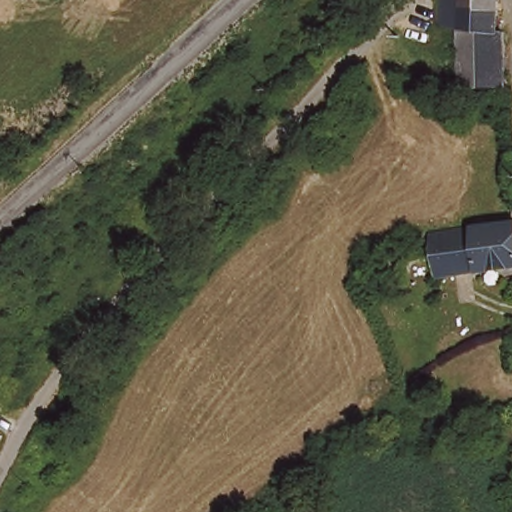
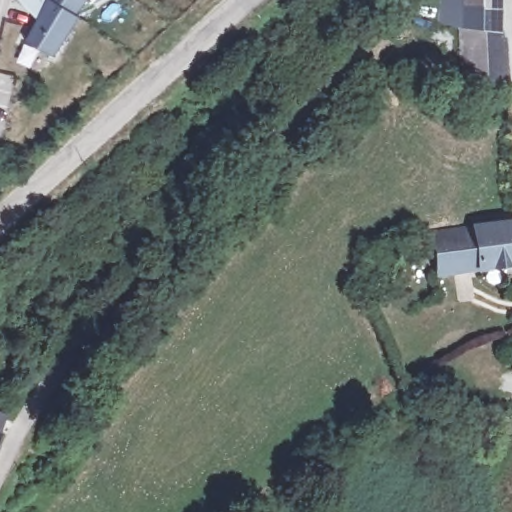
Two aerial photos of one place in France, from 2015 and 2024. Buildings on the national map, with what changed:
new [(74,14),(80,17),(52,57),(26,41),(37,17),(21,0),(86,0),(74,14)]
unchanged [(456,30),(434,25),(437,0),(493,0),(491,37),(456,30)]
unchanged [(491,37),(500,38),(500,93),(455,85),(456,30),(491,37)]
unchanged [(512,227),(512,276),(434,280),(432,238),(512,227)]

